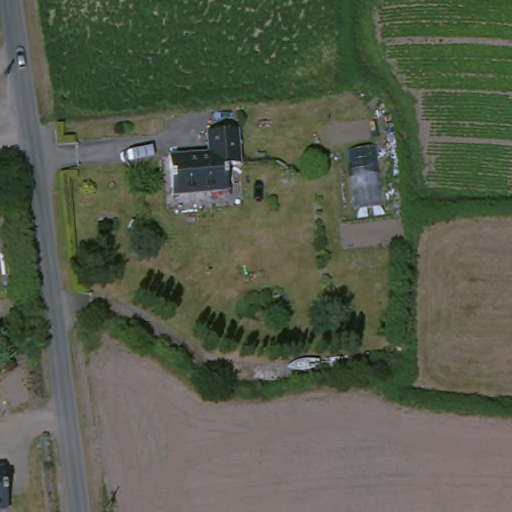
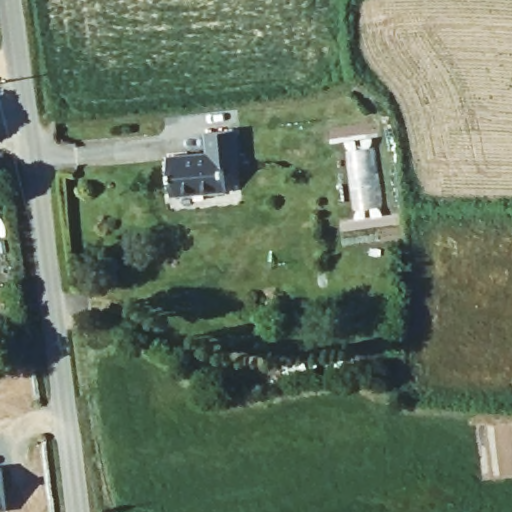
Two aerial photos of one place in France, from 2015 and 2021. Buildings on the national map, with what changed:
unchanged [(218,190),(168,199),(160,161),(198,152),(194,135),(221,129),(229,165),(214,169),(218,190)]
unchanged [(6,506),(0,507),(0,465),(2,465),(6,506)]

